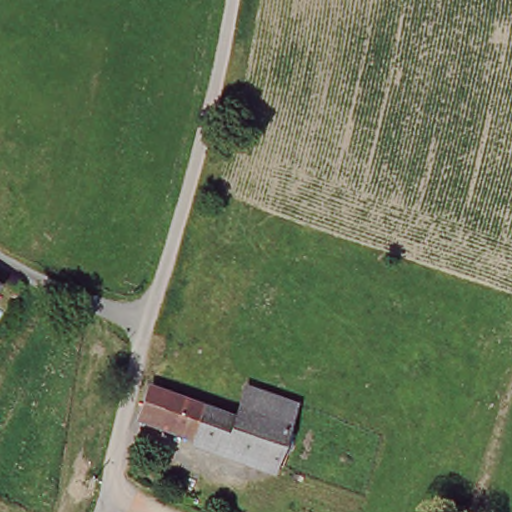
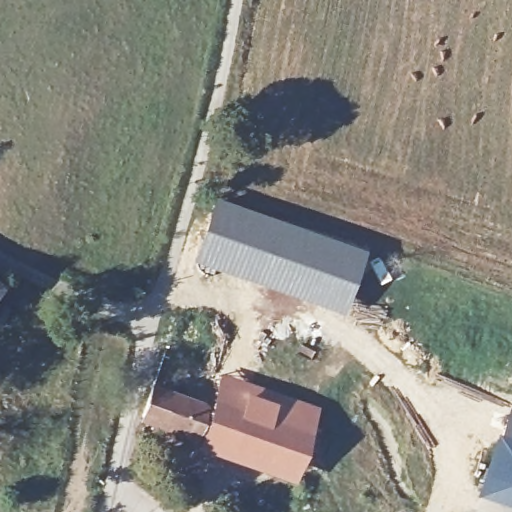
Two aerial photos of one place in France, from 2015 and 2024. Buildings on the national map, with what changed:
new [(212,195),(365,248),(341,314),(251,282),(192,263),(212,195)]
unchanged [(229,420),(235,412),(285,433),(295,437),(280,476),(130,419),(138,386),(229,420)]
unchanged [(242,391),(295,410),(285,433),(235,412),(242,391)]
new [(495,432),(512,438),(512,506),(475,494),(495,432)]

